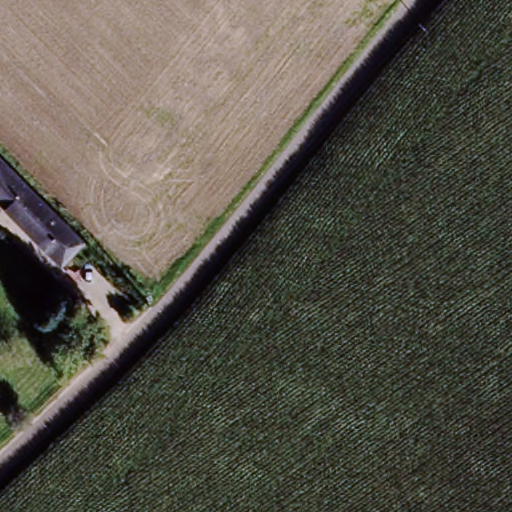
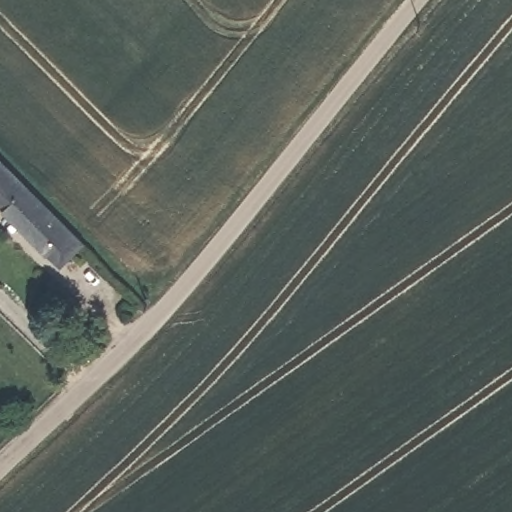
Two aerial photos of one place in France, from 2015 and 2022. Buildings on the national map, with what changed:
unchanged [(0,163),(82,245),(57,266),(0,208),(0,163)]

